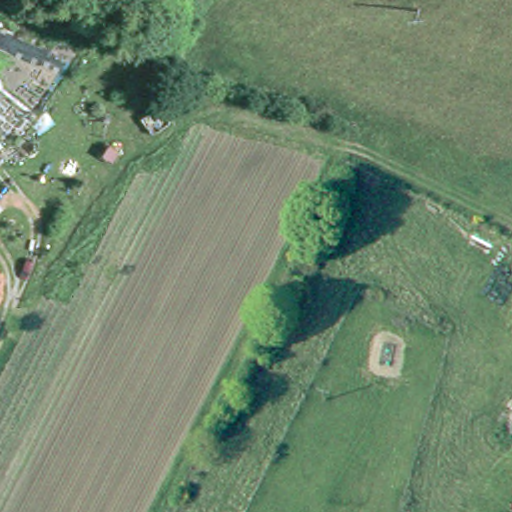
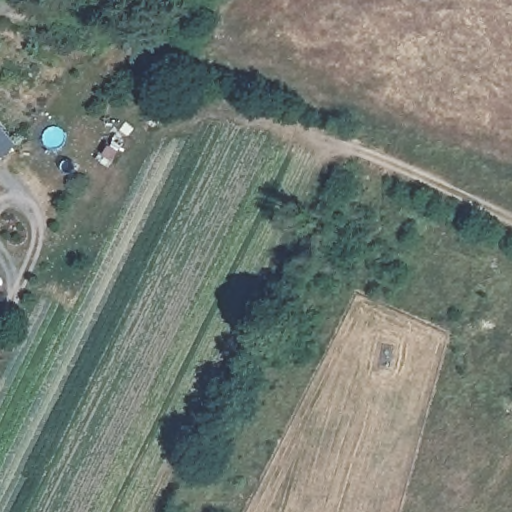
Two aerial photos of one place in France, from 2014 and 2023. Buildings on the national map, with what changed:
[]

